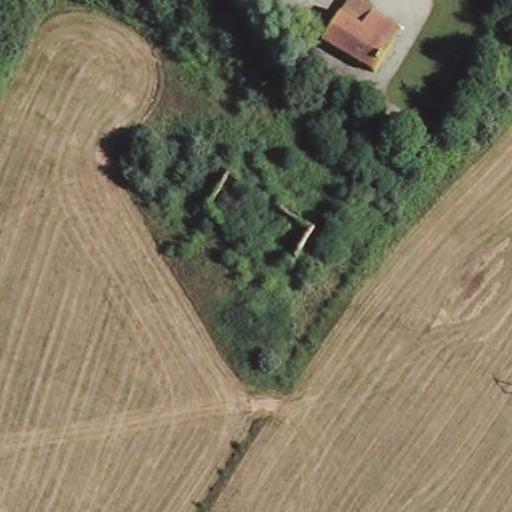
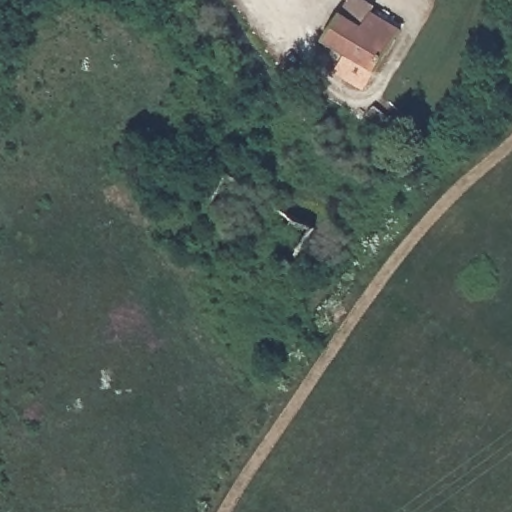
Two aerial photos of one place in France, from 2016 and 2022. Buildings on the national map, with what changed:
unchanged [(342,26),(348,15),(369,28),(378,13),(408,31),(382,74),(332,44),(342,26)]

